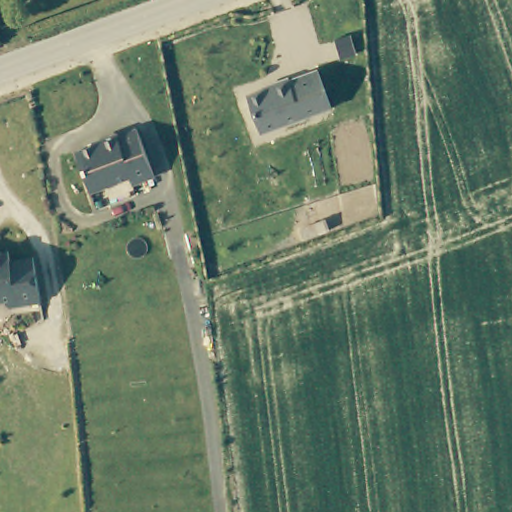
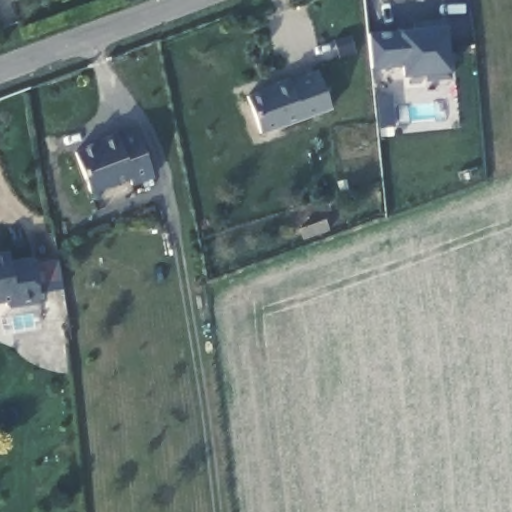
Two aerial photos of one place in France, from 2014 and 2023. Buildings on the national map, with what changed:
new [(369,31),(416,28),(414,21),(447,19),(452,78),(426,80),(425,74),(402,76),(402,65),(372,68),(369,31)]
unchanged [(320,69),(334,106),(263,134),(250,95),(274,86),(275,83),(291,78),(291,79),(320,69)]
unchanged [(110,133),(127,128),(129,129),(146,123),(164,170),(142,178),(140,170),(100,185),(86,144),(110,136),(110,133)]
unchanged [(7,253),(7,263),(32,260),(39,305),(8,309),(5,305),(4,302),(0,302),(0,254),(7,253)]

